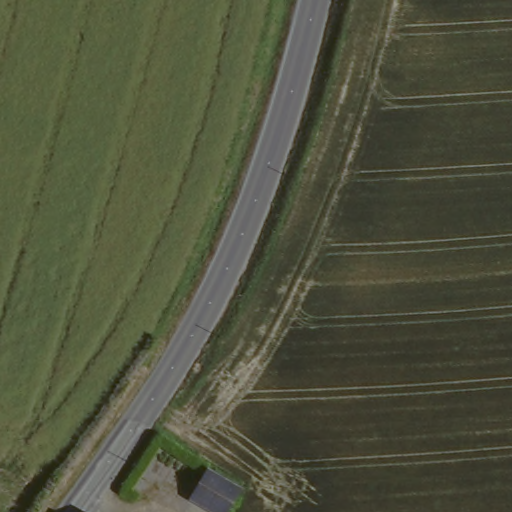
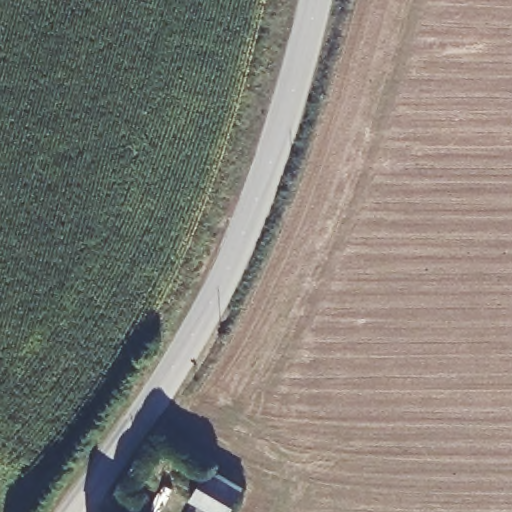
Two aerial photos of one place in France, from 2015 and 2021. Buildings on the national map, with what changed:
unchanged [(200,471),(236,487),(237,488),(227,512),(202,512),(185,502),(200,471)]

